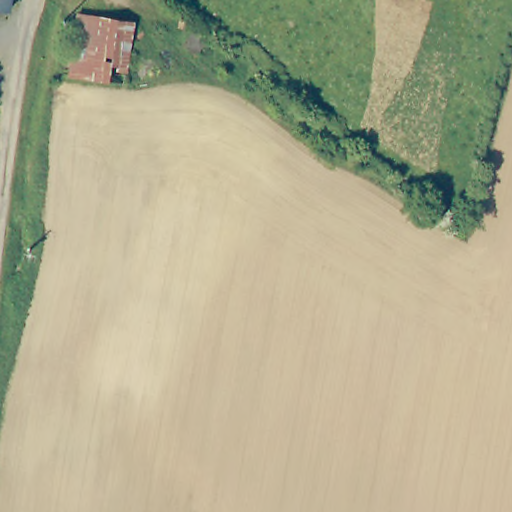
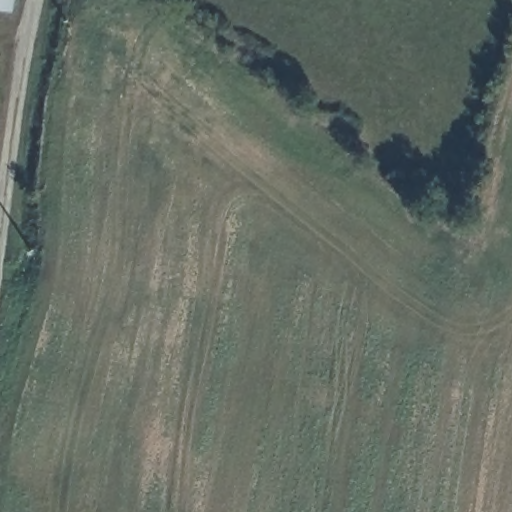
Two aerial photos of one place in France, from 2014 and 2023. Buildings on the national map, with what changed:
unchanged [(0,3),(0,0),(13,0),(12,5),(0,3)]
unchanged [(136,19),(127,79),(73,70),(82,10),(136,19)]
unchanged [(205,41),(192,53),(170,34),(180,22),(205,41)]

